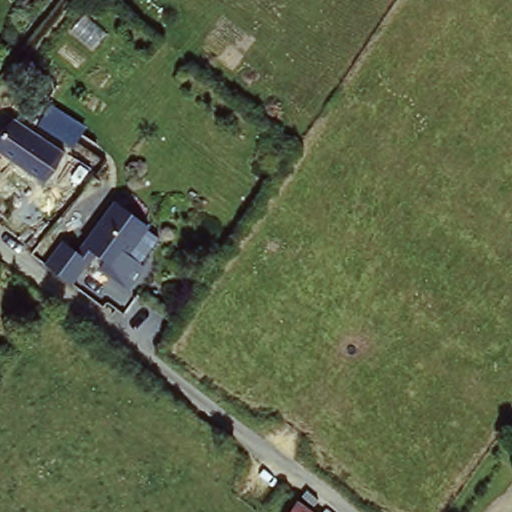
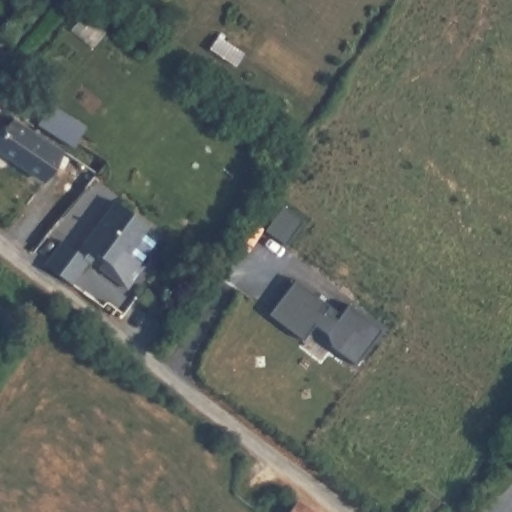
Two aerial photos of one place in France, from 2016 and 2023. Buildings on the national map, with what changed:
new [(50,107),(84,129),(71,149),(38,127),(50,107)]
unchanged [(0,155),(0,140),(9,128),(28,142),(31,138),(84,175),(64,199),(0,155)]
unchanged [(149,220),(129,249),(143,261),(125,281),(95,253),(73,279),(53,262),(69,240),(76,245),(115,198),(149,220)]
new [(328,303),(338,311),(346,301),(380,327),(354,362),(329,344),(324,331),(313,323),(301,338),(266,313),(292,278),(328,303)]
unchanged [(303,512),(293,512),(296,507),(303,512)]

